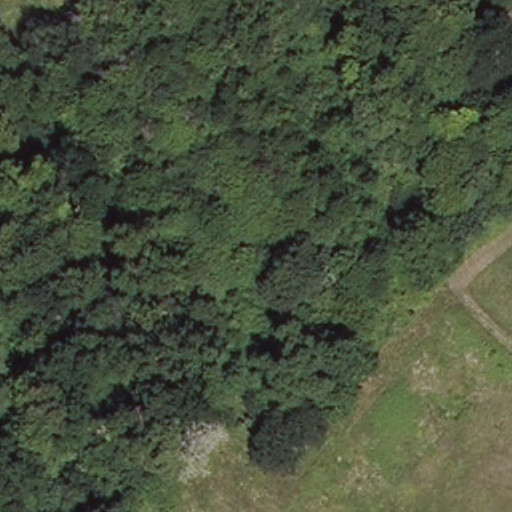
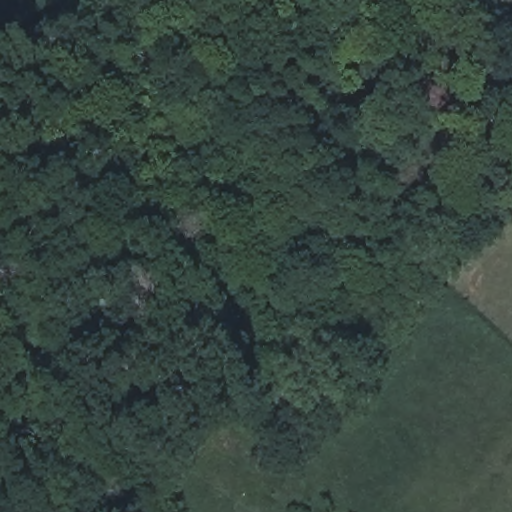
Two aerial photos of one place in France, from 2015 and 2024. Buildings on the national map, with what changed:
[]

